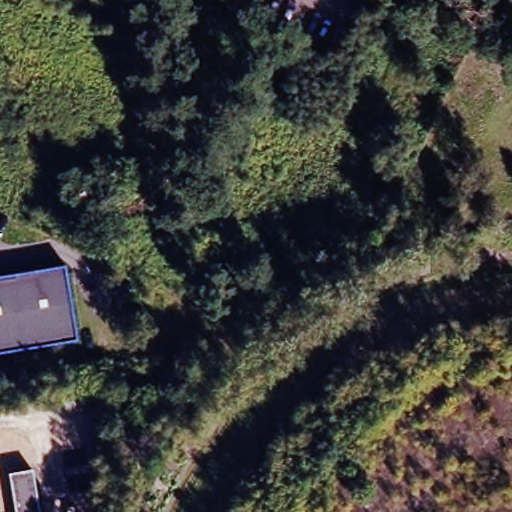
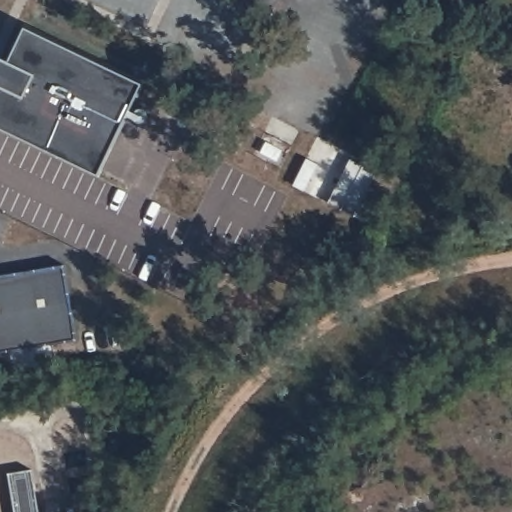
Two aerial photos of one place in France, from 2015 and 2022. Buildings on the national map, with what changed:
new [(90,163),(0,116),(0,44),(5,47),(22,12),(138,73),(90,163)]
new [(350,155),(376,167),(354,212),(327,198),(350,155)]
unchanged [(76,338),(0,350),(0,276),(63,266),(76,338)]
unchanged [(32,468),(39,512),(11,512),(5,475),(32,468)]

